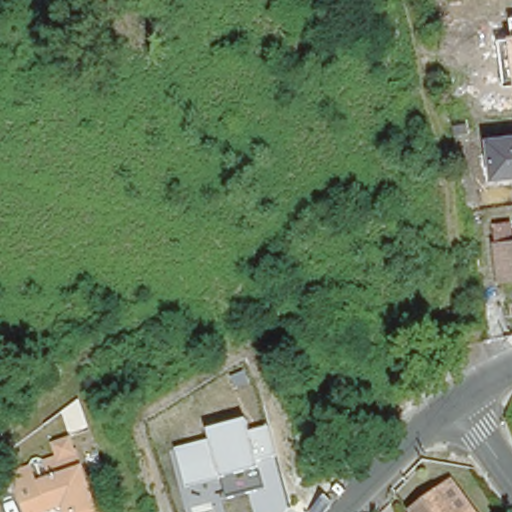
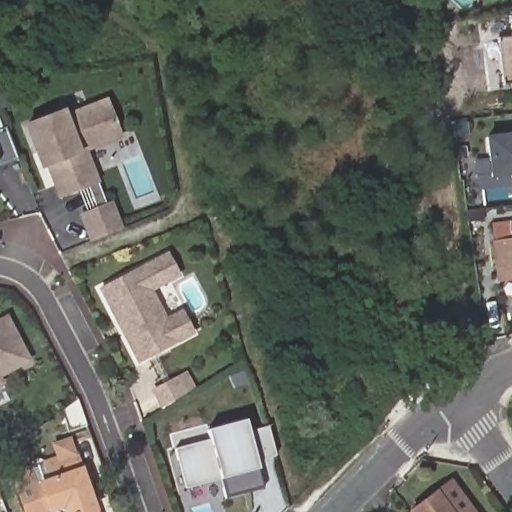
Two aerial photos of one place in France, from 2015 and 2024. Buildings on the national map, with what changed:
unchanged [(510,17),(512,17),(512,32),(510,17)]
unchanged [(504,88),(498,38),(512,36),(512,87),(504,88)]
new [(125,138),(90,151),(100,182),(59,198),(46,168),(42,169),(25,124),(66,107),(68,111),(109,96),(125,138)]
new [(18,160),(0,166),(0,130),(6,128),(18,160)]
unchanged [(491,178),(485,135),(512,132),(512,175),(491,178)]
new [(124,229),(91,242),(80,214),(114,200),(124,229)]
unchanged [(500,278),(493,226),(511,224),(512,229),(512,276),(500,278)]
new [(167,316),(183,309),(196,333),(139,364),(98,288),(169,251),(182,277),(155,291),(167,316)]
new [(0,319),(9,314),(34,361),(2,376),(6,384),(0,387),(0,319)]
new [(165,406),(157,388),(187,374),(195,392),(165,406)]
unchanged [(276,456),(257,462),(265,488),(227,499),(222,478),(186,488),(176,447),(210,441),(207,430),(245,419),(249,432),(268,426),(276,456)]
unchanged [(88,512),(20,512),(9,479),(71,461),(88,512)]
unchanged [(417,507),(448,485),(468,512),(421,512),(417,507)]

